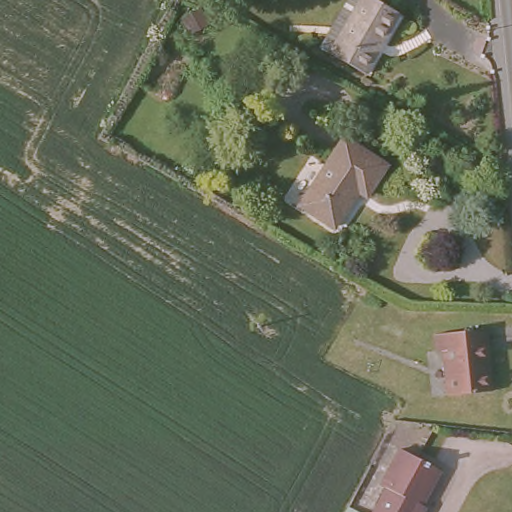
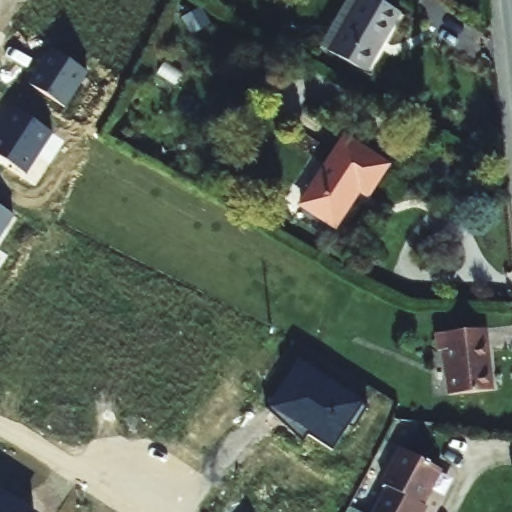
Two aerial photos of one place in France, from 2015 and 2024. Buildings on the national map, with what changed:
unchanged [(338,15),(346,0),(376,0),(400,13),(366,73),(320,47),(338,15)]
unchanged [(182,18),(201,8),(208,22),(190,32),(182,18)]
new [(28,83),(50,48),(88,74),(66,108),(28,83)]
new [(0,158),(0,128),(13,108),(52,134),(26,174),(0,158)]
unchanged [(372,195),(364,190),(340,227),(306,204),(349,137),(392,165),(372,195)]
new [(14,216),(0,237),(0,207),(14,216)]
unchanged [(459,390),(454,346),(447,346),(445,329),(494,324),(501,386),(459,390)]
new [(267,408),(298,360),(363,402),(333,450),(308,434),(303,442),(267,408)]
unchanged [(444,468),(421,512),(377,512),(391,486),(385,483),(391,472),(404,447),(439,465),(444,468)]
new [(34,512),(0,512),(0,489),(34,512)]

